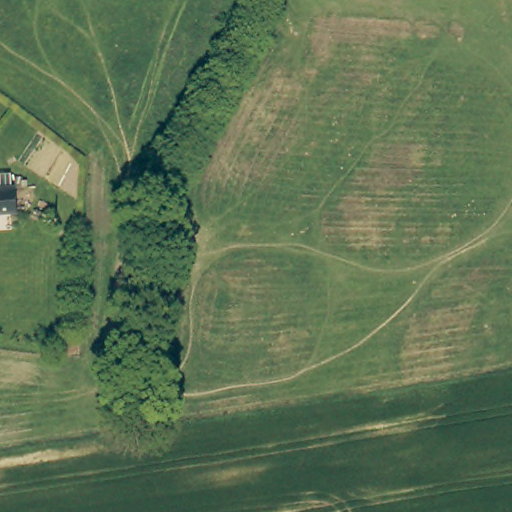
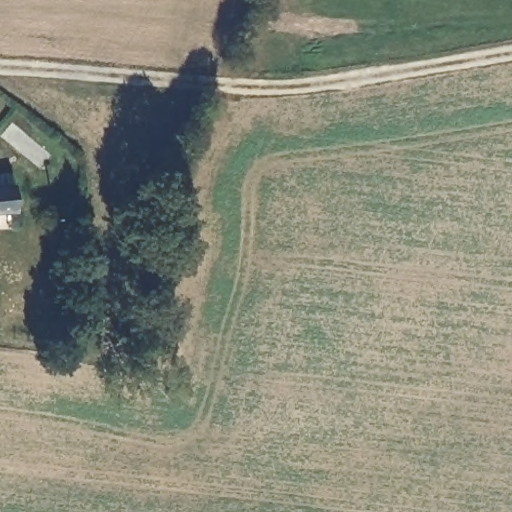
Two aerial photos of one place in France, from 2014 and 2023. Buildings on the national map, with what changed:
unchanged [(14,184),(15,211),(0,212),(0,185),(2,185),(14,184)]

